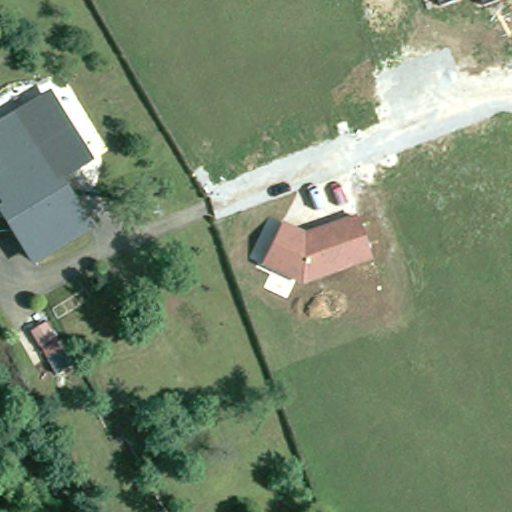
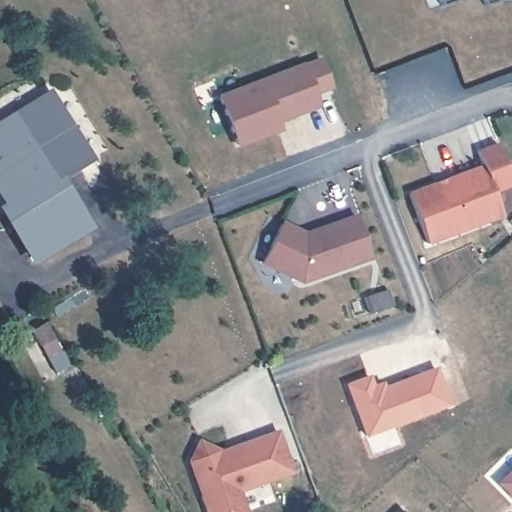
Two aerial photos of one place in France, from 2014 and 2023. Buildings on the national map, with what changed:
unchanged [(436,0),(451,0),(437,4),(436,0)]
unchanged [(478,0),(500,0),(481,6),(478,0)]
new [(315,99),(300,103),(302,111),(264,124),(267,132),(237,144),(219,96),(301,66),(315,99)]
unchanged [(50,93),(91,160),(57,181),(54,183),(25,135),(18,125),(13,118),(50,93)]
unchanged [(54,183),(57,181),(86,228),(32,261),(3,214),(8,210),(0,196),(0,126),(13,118),(54,183)]
new [(481,164),(475,149),(497,142),(512,184),(512,187),(493,194),(503,218),(427,245),(408,192),(481,164)]
unchanged [(307,234),(357,215),(371,260),(300,283),(260,268),(282,222),(307,234)]
new [(509,221),(512,218),(512,224),(509,221)]
new [(372,390),(381,386),(383,391),(434,371),(448,408),(365,439),(346,388),(367,379),(372,390)]
new [(220,450),(277,429),(292,474),(239,491),(246,512),(204,512),(187,463),(197,440),(220,450)]
new [(495,481),(512,464),(512,499),(495,481)]

